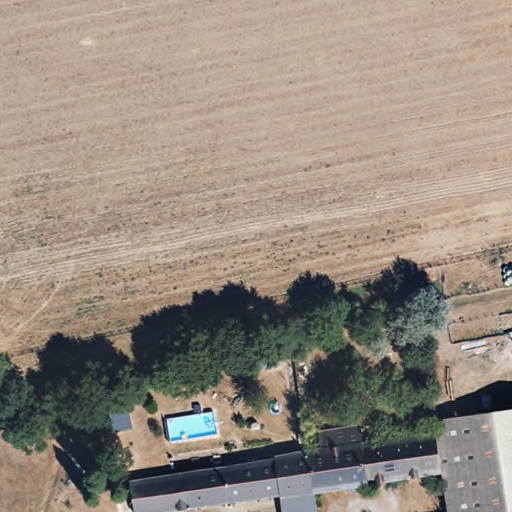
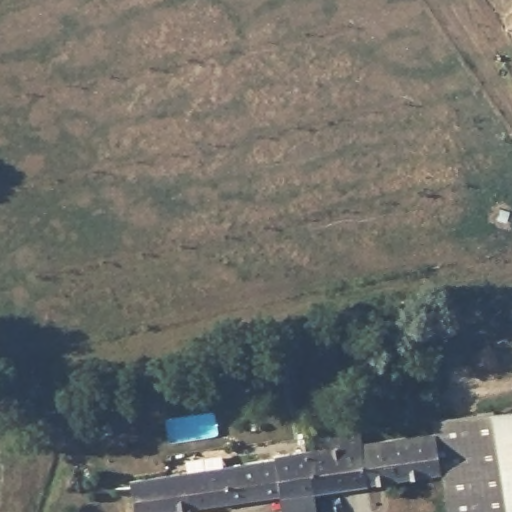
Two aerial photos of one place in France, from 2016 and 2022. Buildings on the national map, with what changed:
unchanged [(434,443),(432,431),(457,426),(512,414),(512,512),(448,512),(442,482),(434,443)]
unchanged [(360,455),(434,443),(442,482),(316,501),(308,455),(317,453),(315,438),(356,432),(360,455)]
unchanged [(249,468),(248,465),(308,455),(316,501),(282,506),(244,512),(132,512),(131,506),(128,487),(249,468)]
unchanged [(318,512),(283,512),(282,506),(316,501),(318,512)]

